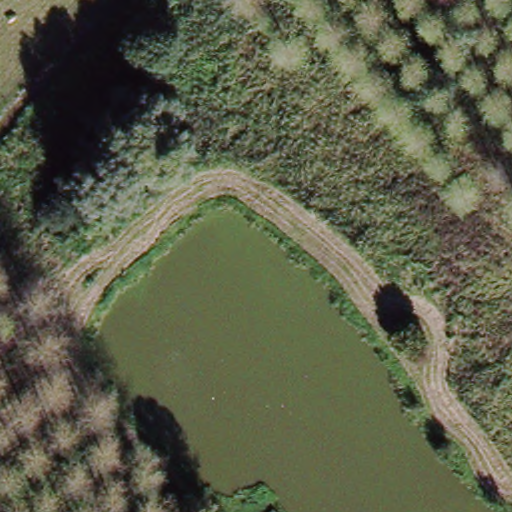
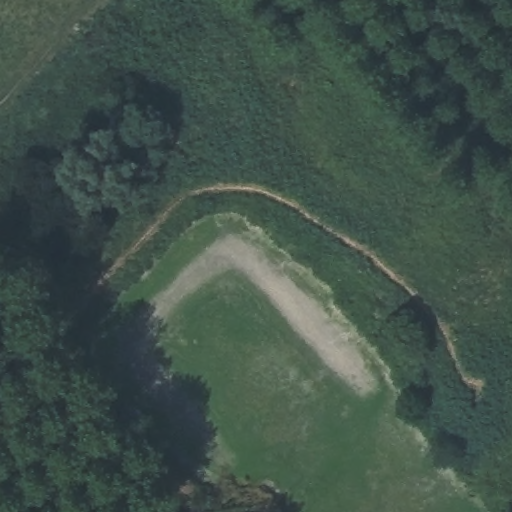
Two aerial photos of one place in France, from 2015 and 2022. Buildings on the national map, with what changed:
unchanged [(276,511),(277,512),(275,512),(276,511)]

